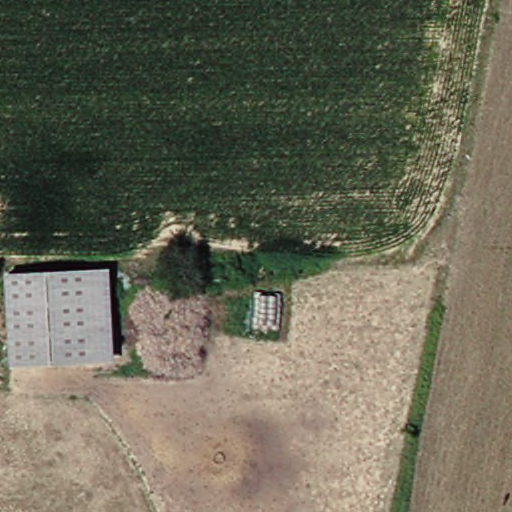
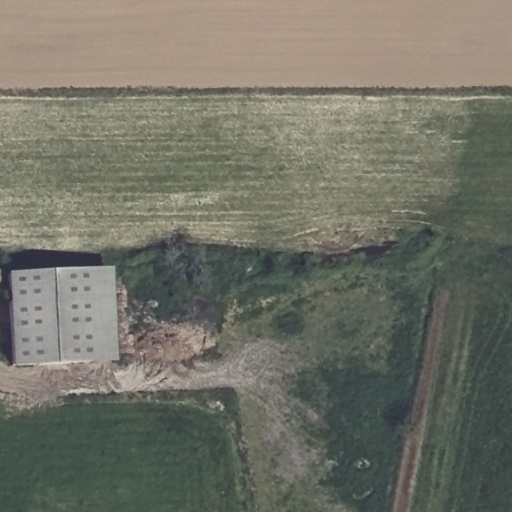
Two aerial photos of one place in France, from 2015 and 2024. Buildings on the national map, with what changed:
unchanged [(110,268),(115,361),(10,365),(5,274),(110,268)]

